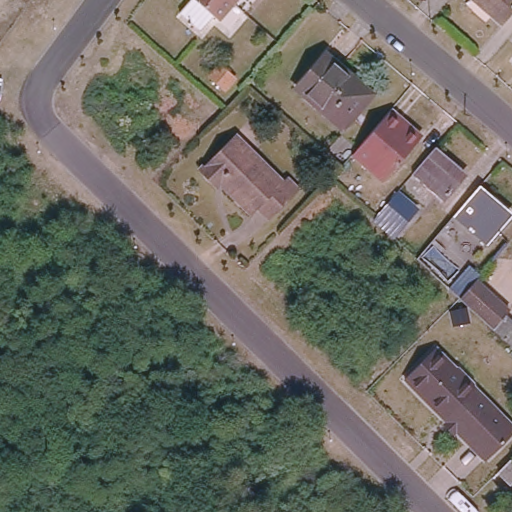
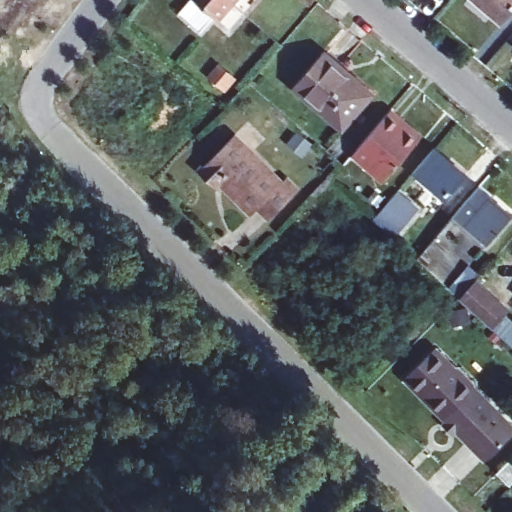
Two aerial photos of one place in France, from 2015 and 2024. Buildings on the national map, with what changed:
unchanged [(200,0),(231,0),(219,15),(200,0)]
unchanged [(502,21),(477,0),(512,0),(512,8),(502,21)]
unchanged [(371,91),(340,125),(296,84),(325,52),(371,91)]
unchanged [(229,67),(242,78),(232,90),(219,78),(229,67)]
unchanged [(412,115),(409,119),(427,136),(391,176),(360,150),(400,103),(412,115)]
unchanged [(285,175),(290,170),(302,183),(273,212),(262,200),(255,206),(225,176),(220,180),(204,164),(237,129),(285,175)]
unchanged [(439,142),(454,155),(450,158),(467,172),(447,195),(417,168),(439,142)]
unchanged [(512,214),(512,216),(487,245),(455,217),(482,186),(512,214)]
unchanged [(382,218),(385,214),(393,206),(405,191),(425,208),(405,231),(401,235),(382,218)]
unchanged [(505,313),(512,320),(512,344),(489,325),(459,297),(449,288),(469,264),(480,273),(470,284),(477,289),(480,285),(505,306),(509,309),(505,313)]
unchanged [(405,378),(437,347),(472,386),(444,415),(405,378)]
unchanged [(467,438),(444,415),(472,386),(512,424),(512,429),(488,453),(485,456),(467,438)]
unchanged [(512,462),(512,481),(502,471),(512,462)]

